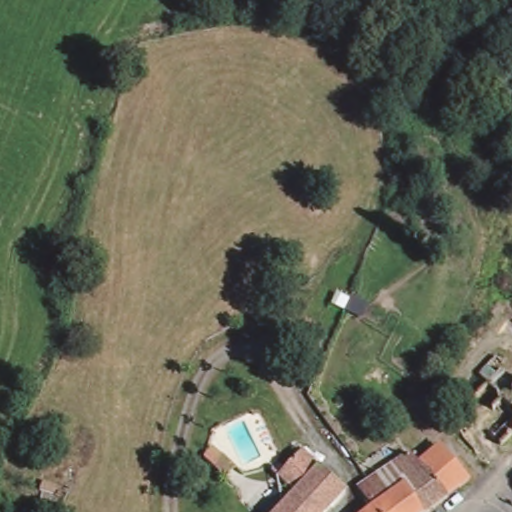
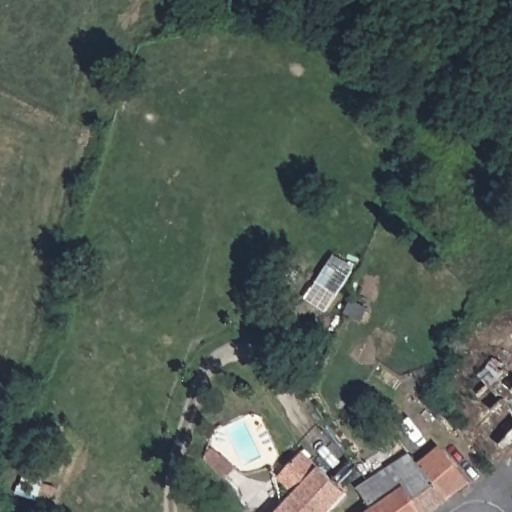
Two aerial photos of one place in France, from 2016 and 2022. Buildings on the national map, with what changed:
unchanged [(389,442),(407,430),(421,451),(440,440),(466,481),(468,485),(431,512),(416,512),(401,492),(373,511),(360,490),(370,484),(402,462),(389,442)]
unchanged [(291,487),(280,476),(278,475),(303,448),(320,465),(346,490),(326,512),(275,512),(291,496),(291,487)]
unchanged [(235,470),(225,482),(213,472),(220,457),(235,470)]
unchanged [(401,492),(416,512),(372,512),(373,511),(401,492)]

